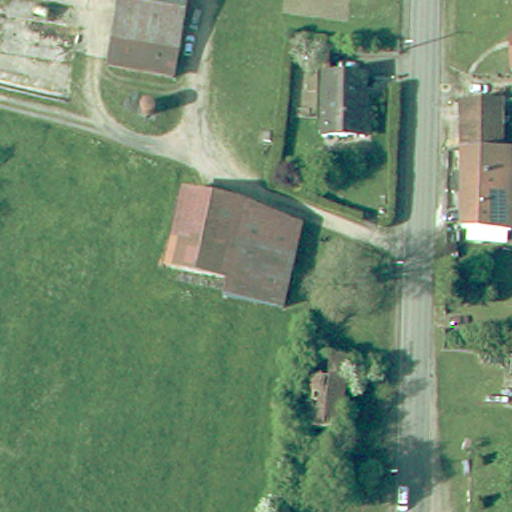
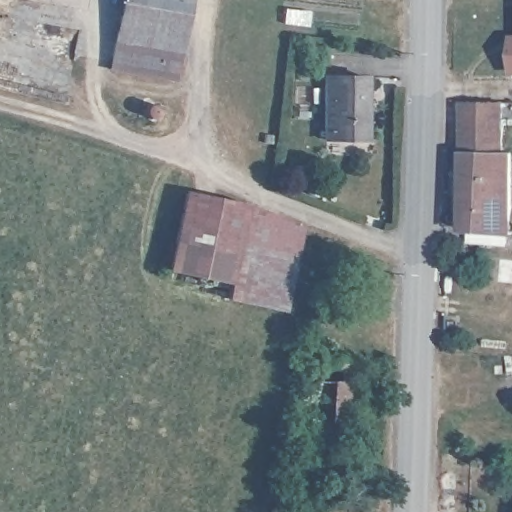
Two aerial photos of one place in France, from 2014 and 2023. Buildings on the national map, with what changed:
unchanged [(169,79),(100,70),(114,0),(184,0),(169,79)]
unchanged [(512,34),(512,66),(507,66),(506,43),(505,34),(512,34)]
unchanged [(360,78),(357,140),(317,138),(320,76),(360,78)]
unchanged [(460,107),(500,108),(501,150),(460,150),(460,107)]
unchanged [(507,155),(507,211),(512,212),(512,234),(505,234),(505,237),(457,233),(459,199),(449,199),(448,180),(459,180),(461,154),(507,155)]
unchanged [(170,204),(231,208),(231,215),(227,285),(164,279),(170,204)]
unchanged [(231,215),(292,219),(287,298),(227,296),(227,285),(231,215)]
unchanged [(342,348),(334,435),(306,433),(312,368),(306,367),(309,345),(342,348)]

